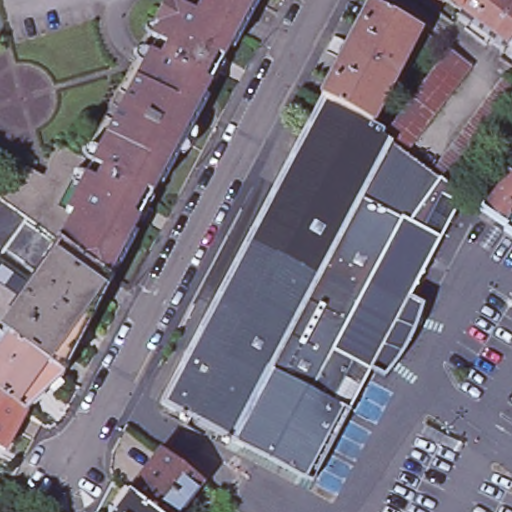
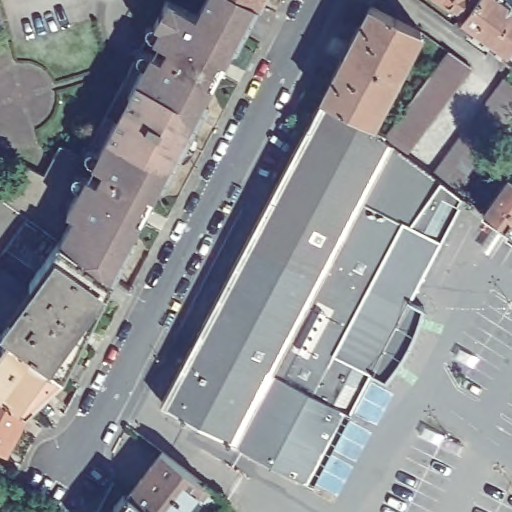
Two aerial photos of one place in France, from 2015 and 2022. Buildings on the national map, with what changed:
unchanged [(149,53),(161,58),(167,47),(149,37),(167,0),(176,0),(197,15),(204,0),(268,0),(263,9),(217,85),(145,224),(107,292),(64,375),(26,418),(10,460),(0,454),(0,349),(5,339),(0,333),(0,329),(53,254),(72,217),(64,210),(92,158),(136,77),(149,53)]
unchanged [(436,0),(512,0),(512,47),(507,52),(462,21),(436,0)]
unchanged [(320,98),(370,1),(427,34),(410,67),(377,130),(320,98)]
unchanged [(407,154),(430,171),(498,86),(512,98),(512,122),(455,194),(465,199),(309,482),(163,405),(252,242),(320,98),(377,130),(385,136),(430,80),(410,67),(427,34),(474,70),(407,154)]
unchanged [(512,47),(512,56),(507,52),(512,47)]
unchanged [(3,198),(20,162),(47,175),(61,146),(92,158),(64,210),(72,217),(53,254),(0,329),(0,196),(3,198)]
unchanged [(507,175),(512,177),(512,238),(481,214),(507,175)]
unchanged [(5,339),(0,349),(0,333),(5,339)]
unchanged [(202,495),(191,512),(119,512),(132,495),(164,462),(202,495)]

